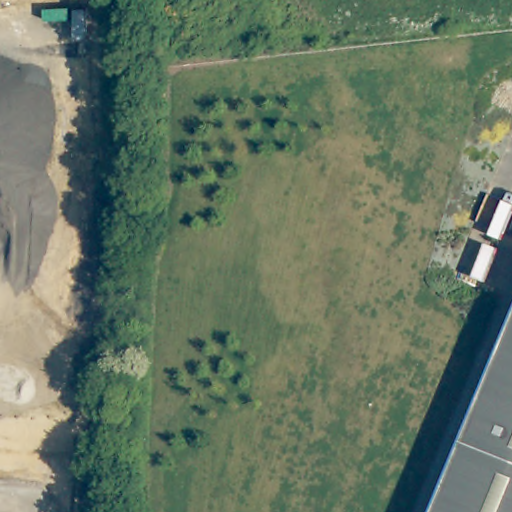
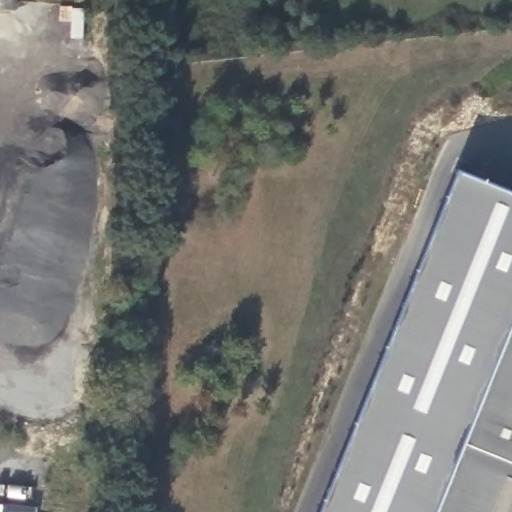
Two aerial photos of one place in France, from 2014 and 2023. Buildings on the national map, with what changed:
new [(512,328),(440,512),(322,512),(459,171),(512,195),(512,328)]
unchanged [(512,328),(512,512),(440,512),(512,328)]

